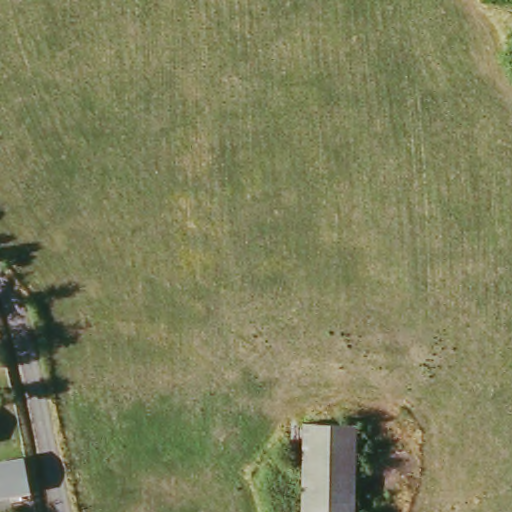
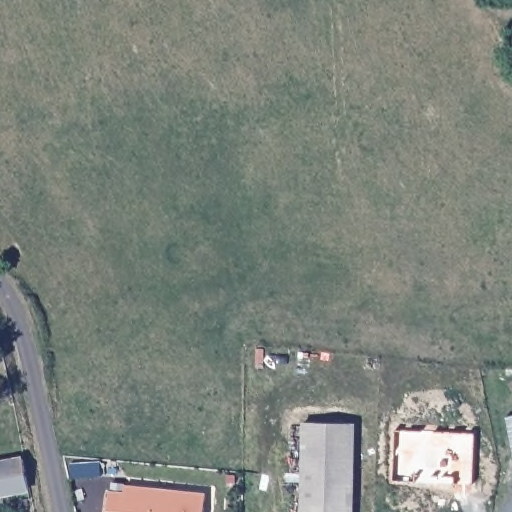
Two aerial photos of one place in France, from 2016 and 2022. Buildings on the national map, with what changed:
new [(507,418),(512,417),(512,444),(507,418)]
unchanged [(305,423),(354,423),(351,512),(302,512),(305,423)]
unchanged [(29,489),(0,497),(0,465),(20,459),(29,489)]
new [(109,492),(126,493),(127,484),(207,493),(205,512),(107,512),(109,492)]

